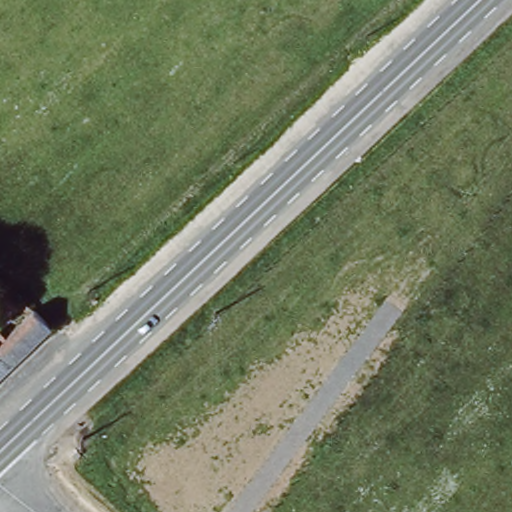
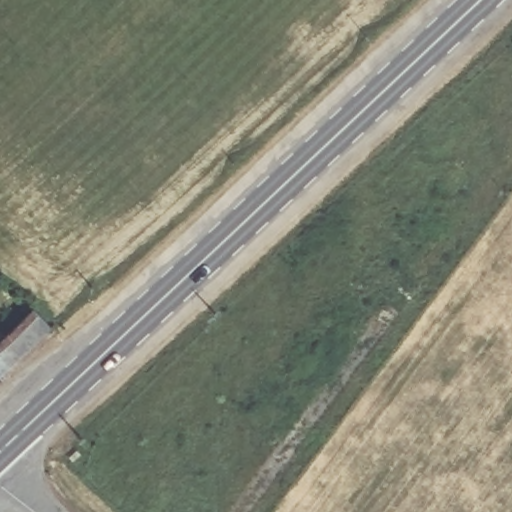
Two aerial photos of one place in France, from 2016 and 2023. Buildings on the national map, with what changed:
unchanged [(8,335),(28,315),(22,309),(27,304),(56,325),(0,378),(0,334),(3,332),(8,335)]

